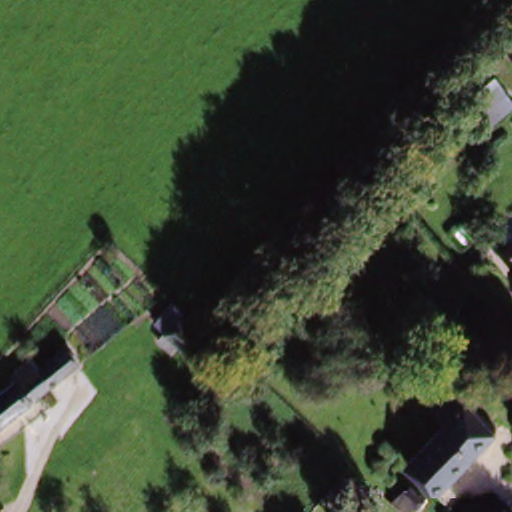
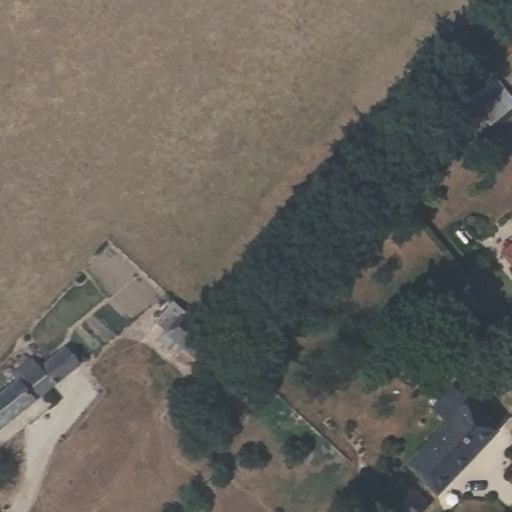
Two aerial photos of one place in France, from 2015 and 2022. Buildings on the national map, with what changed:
unchanged [(512,242),(512,267),(511,266),(499,253),(505,248),(512,242)]
unchanged [(201,368),(163,331),(153,322),(168,305),(178,313),(218,350),(201,368)]
unchanged [(3,368),(21,355),(29,367),(48,352),(53,349),(69,371),(65,374),(0,423),(0,389),(11,381),(3,368)]
unchanged [(451,437),(439,425),(449,413),(446,410),(466,389),(506,428),(451,486),(427,463),(451,437)]
unchanged [(427,511),(425,512),(400,512),(413,498),(427,511)]

